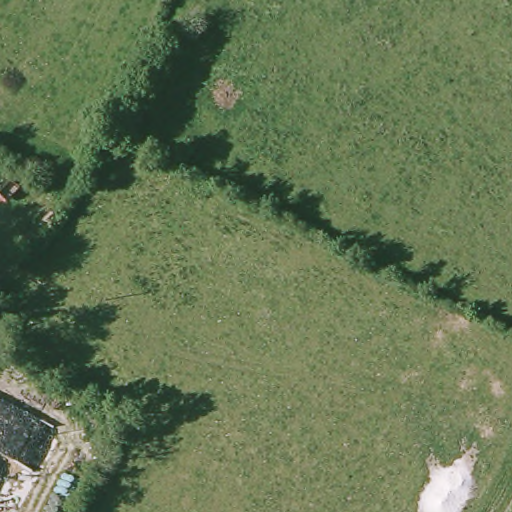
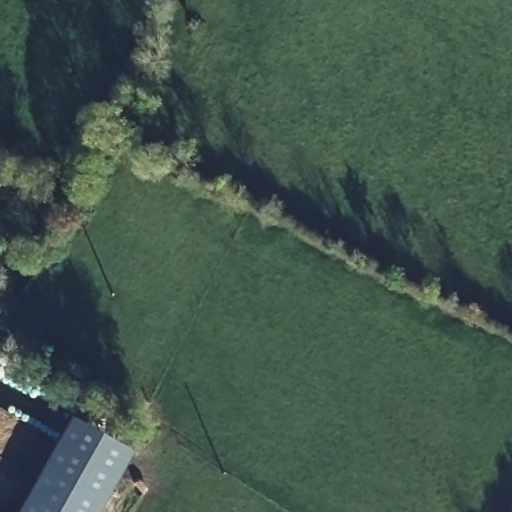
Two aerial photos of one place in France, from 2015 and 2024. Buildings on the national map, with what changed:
new [(137,451),(103,512),(19,512),(73,416),(137,451)]

